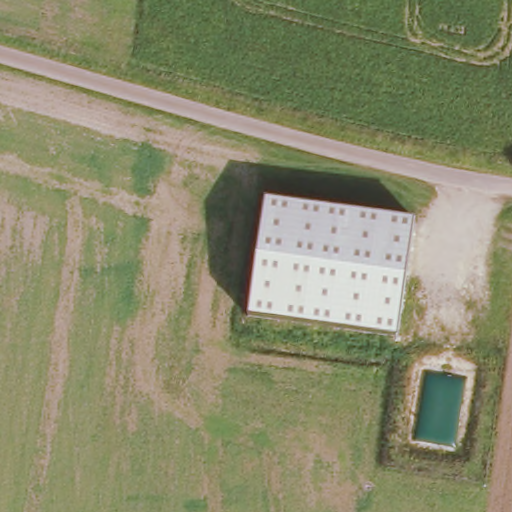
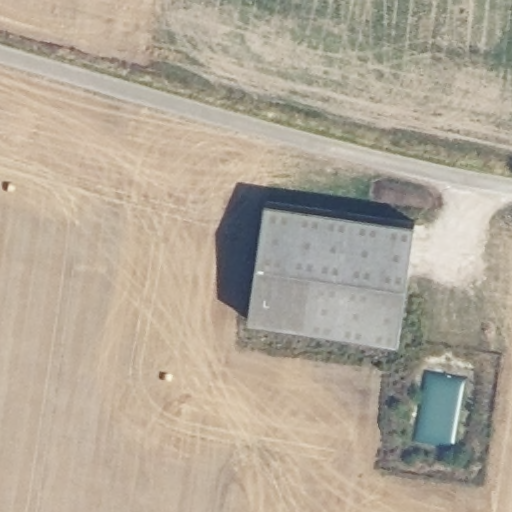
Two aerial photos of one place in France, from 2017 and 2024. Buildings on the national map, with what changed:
unchanged [(397,338),(250,316),(265,199),(413,222),(397,338)]

